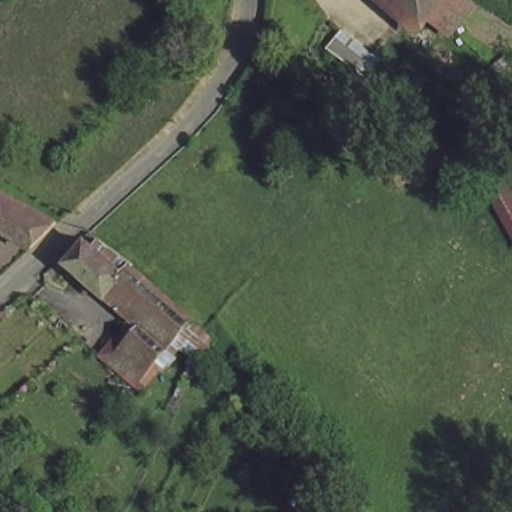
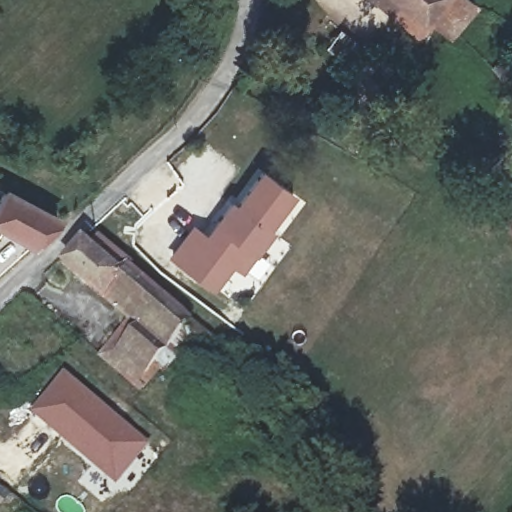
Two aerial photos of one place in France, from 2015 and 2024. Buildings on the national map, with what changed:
unchanged [(419,26),(382,0),(438,0),(425,18),(419,26)]
unchanged [(492,16),(467,49),(425,18),(438,0),(470,0),(492,16)]
demolished [(236,68),(258,28),(305,50),(286,92),(236,68)]
unchanged [(512,189),(512,238),(472,165),(492,154),(512,189)]
new [(192,223),(206,232),(230,198),(235,201),(261,167),(296,192),(271,226),(275,230),(242,272),(233,265),(214,291),(168,257),(192,223)]
unchanged [(0,228),(0,205),(4,199),(52,224),(29,243),(0,228)]
unchanged [(133,318),(65,271),(86,240),(171,300),(196,318),(152,385),(109,355),(133,318)]
new [(152,444),(117,486),(32,413),(66,372),(152,444)]

